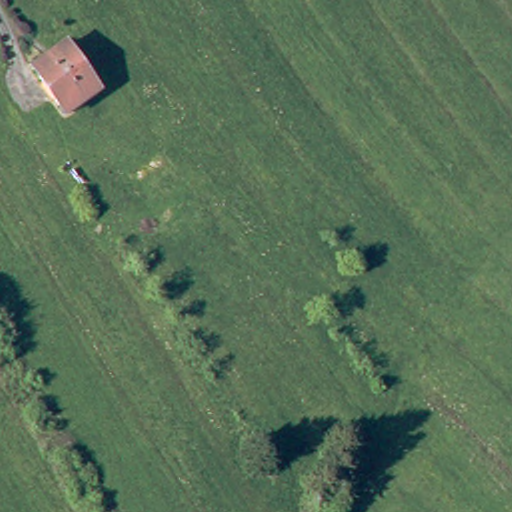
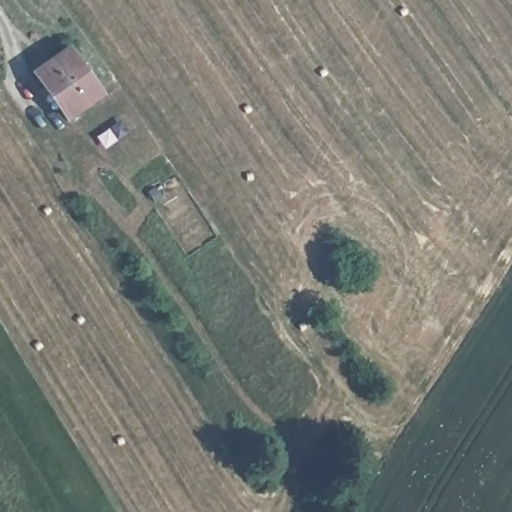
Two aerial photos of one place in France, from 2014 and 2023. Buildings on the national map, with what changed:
unchanged [(67,45),(100,92),(65,116),(32,69),(67,45)]

